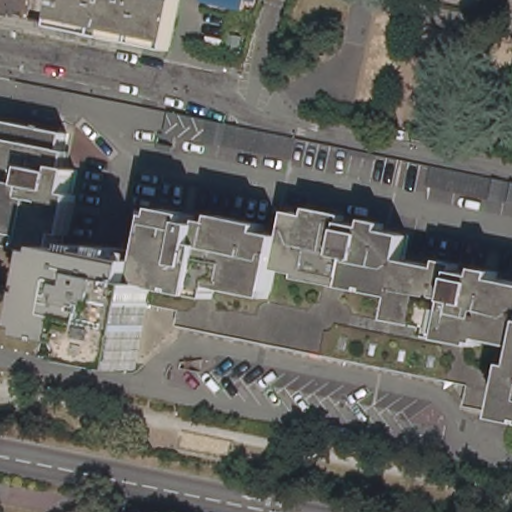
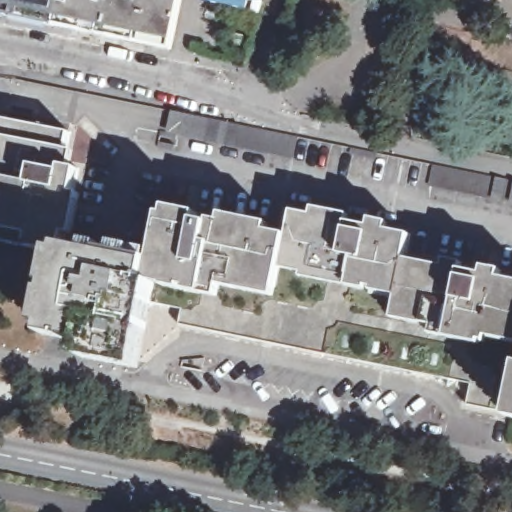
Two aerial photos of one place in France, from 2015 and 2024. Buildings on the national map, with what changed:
unchanged [(32,19),(27,18),(0,12),(0,0),(56,0),(51,22),(32,19)]
unchanged [(154,46),(115,39),(110,38),(100,36),(79,31),(53,26),(52,26),(50,25),(51,22),(56,0),(177,0),(167,49),(160,48),(154,46)]
unchanged [(207,0),(248,0),(247,8),(229,5),(223,4),(207,0)]
unchanged [(179,112),(297,136),(294,156),(175,131),(179,112)]
unchanged [(70,132),(64,166),(79,169),(74,192),(70,210),(67,227),(64,247),(62,254),(7,243),(15,198),(5,196),(12,156),(1,154),(8,120),(70,132)]
unchanged [(512,201),(430,184),(434,164),(512,180),(512,201)]
unchanged [(213,225),(214,221),(289,236),(295,211),(410,234),(405,259),(451,268),(456,269),(487,275),(498,277),(512,280),(512,413),(467,404),(472,383),(477,370),(182,309),(152,302),(155,261),(165,215),(213,225)]
unchanged [(64,247),(104,255),(105,252),(155,261),(152,302),(152,305),(145,303),(144,307),(142,318),(140,323),(133,359),(81,349),(84,334),(65,330),(47,327),(62,254),(64,247)]
unchanged [(477,370),(472,383),(334,356),(326,354),(308,351),(298,348),(180,324),(182,309),(477,370)]

